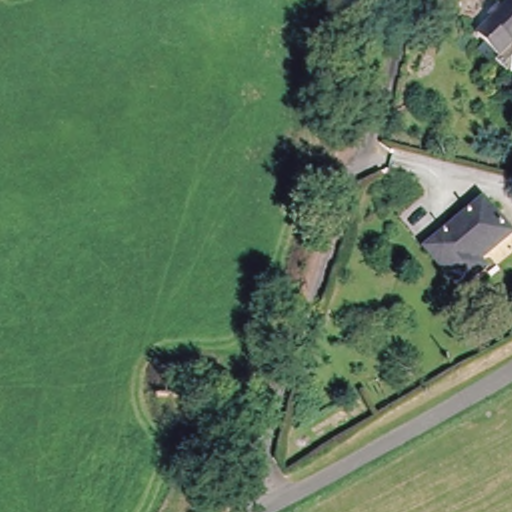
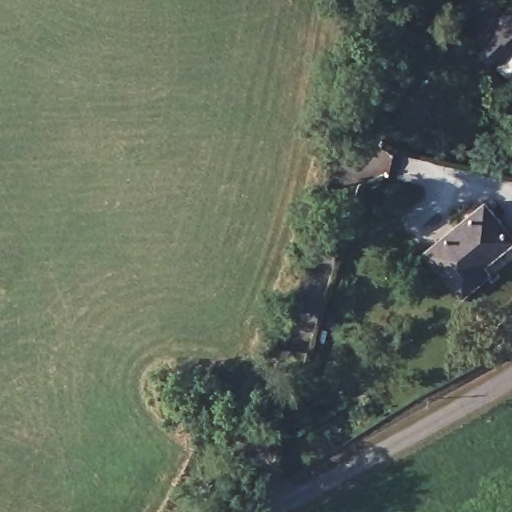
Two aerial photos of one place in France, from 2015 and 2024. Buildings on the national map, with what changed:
unchanged [(496,58),(477,34),(512,6),(512,47),(510,46),(496,58)]
unchanged [(462,293),(427,249),(486,201),(512,231),(512,236),(502,245),(512,256),(486,277),(462,293)]

